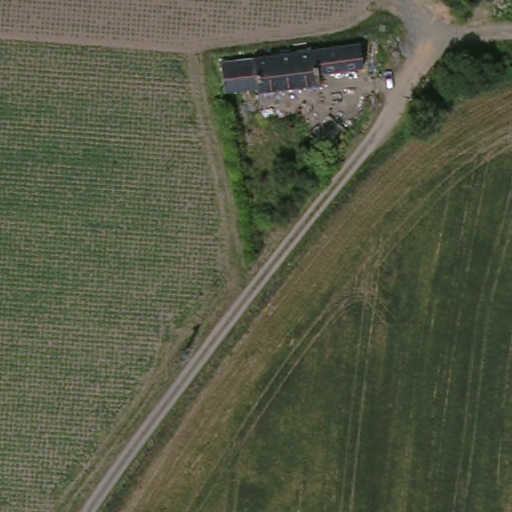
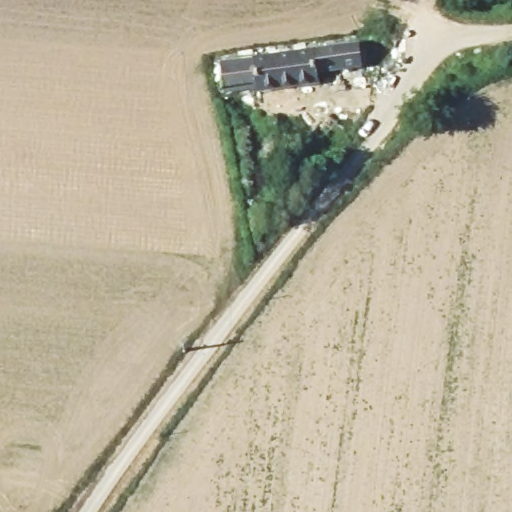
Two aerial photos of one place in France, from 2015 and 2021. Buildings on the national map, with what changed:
unchanged [(363,59),(364,66),(318,76),(321,86),(286,92),(283,93),(253,99),(251,95),(226,100),(220,67),(291,55),(361,43),(363,59)]

